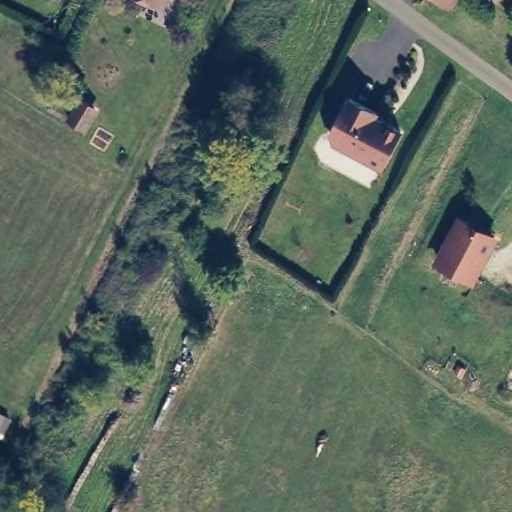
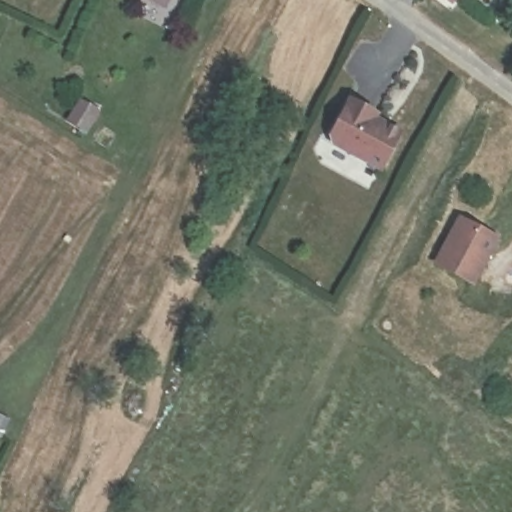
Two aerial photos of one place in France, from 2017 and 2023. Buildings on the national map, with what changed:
unchanged [(149,0),(168,0),(163,8),(149,0)]
unchanged [(450,0),(456,0),(455,3),(450,0)]
unchanged [(385,173),(331,144),(352,94),(385,111),(383,116),(407,131),(385,173)]
unchanged [(499,236),(475,282),(435,262),(459,216),(499,236)]

